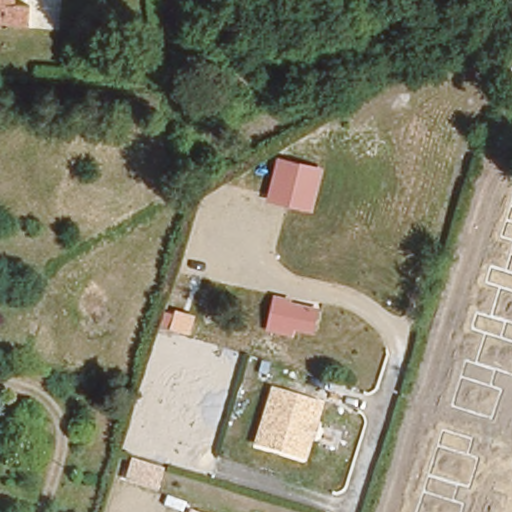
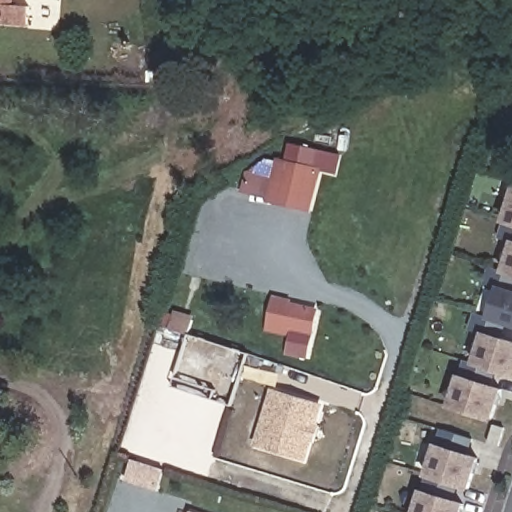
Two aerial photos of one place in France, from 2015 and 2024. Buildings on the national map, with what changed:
unchanged [(32,10),(32,26),(0,24),(0,6),(32,10)]
unchanged [(266,201),(277,157),(323,169),(312,211),(266,201)]
new [(512,190),(512,224),(502,221),(512,190)]
new [(512,242),(497,237),(502,221),(512,224),(512,274),(502,270),(512,242)]
new [(487,318),(497,288),(483,283),(488,265),(502,270),(512,274),(512,326),(507,325),(487,318)]
unchanged [(293,336),(266,330),(273,296),(292,300),(292,302),(319,308),(313,333),(295,330),(293,336)]
new [(195,315),(189,335),(169,328),(175,309),(195,315)]
new [(473,363),(482,334),(469,329),(475,314),(487,318),(507,325),(503,335),(512,339),(512,376),(495,370),(473,363)]
new [(495,420),(449,406),(459,373),(463,360),(473,363),(495,370),(491,383),(506,388),(495,420)]
unchanged [(325,406),(307,460),(256,443),(273,390),(325,406)]
new [(472,438),(468,452),(481,456),(471,490),(460,486),(426,476),(436,444),(441,428),(472,438)]
unchanged [(124,489),(131,463),(167,471),(159,497),(124,489)]
new [(460,486),(456,499),(466,502),(463,512),(414,512),(426,476),(460,486)]

